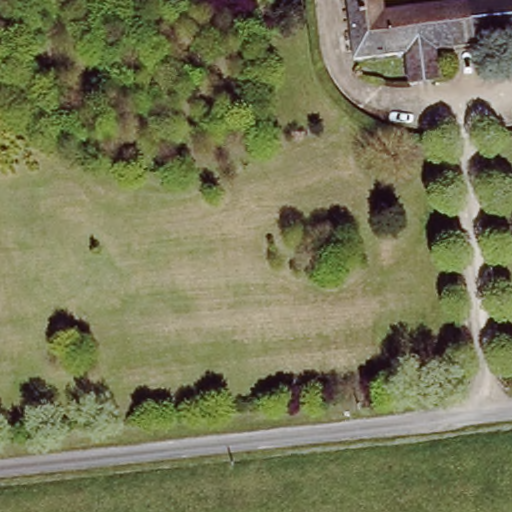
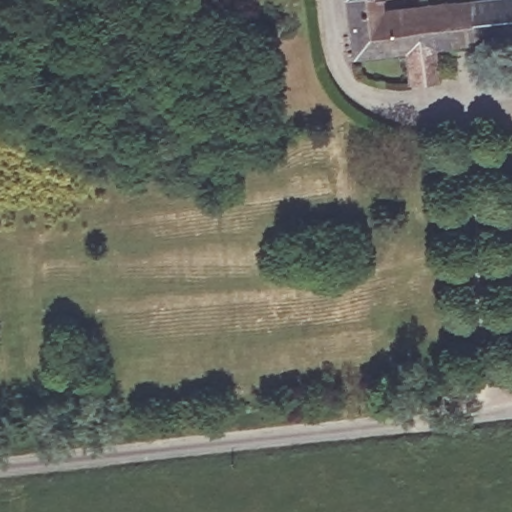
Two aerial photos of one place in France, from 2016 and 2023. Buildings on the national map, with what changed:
unchanged [(410,0),(512,0),(512,39),(440,43),(442,77),(415,79),(413,50),(355,54),(352,27),(339,28),(337,8),(350,5),(350,0),(386,0),(386,2),(410,0)]

